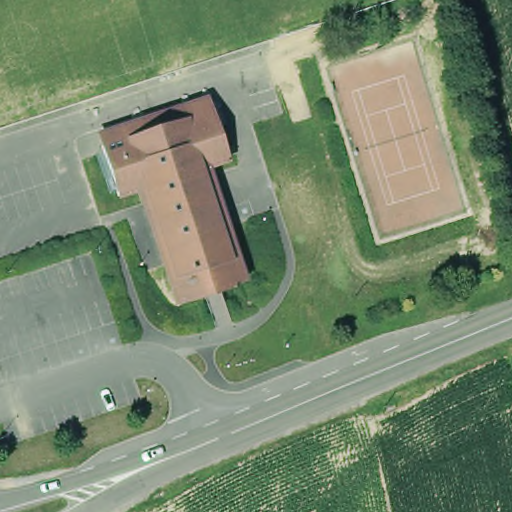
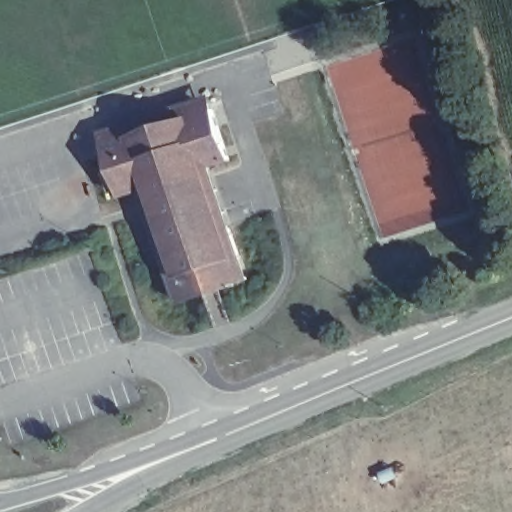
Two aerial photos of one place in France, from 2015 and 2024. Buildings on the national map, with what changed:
unchanged [(123,191),(105,139),(213,104),(230,154),(211,160),(143,184),(123,191)]
unchanged [(143,184),(211,160),(231,218),(182,235),(167,259),(143,184)]
unchanged [(237,275),(179,296),(167,259),(182,235),(231,218),(240,251),(248,272),(237,275)]

